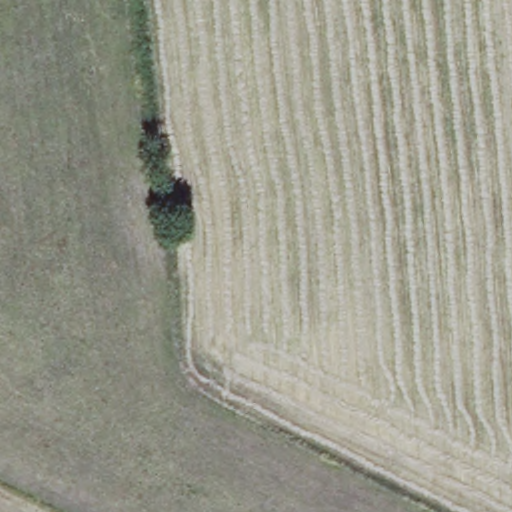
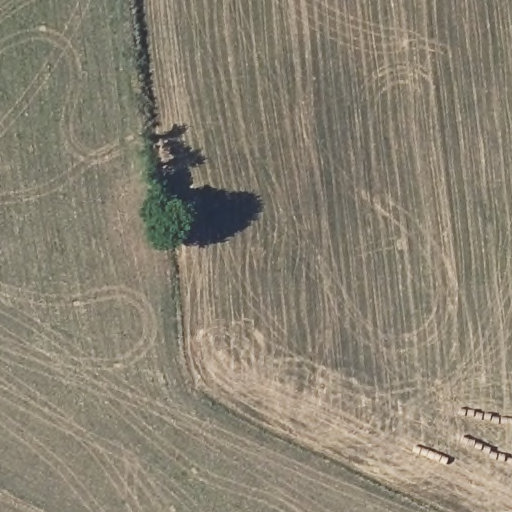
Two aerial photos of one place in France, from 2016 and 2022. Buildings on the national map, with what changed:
[]

